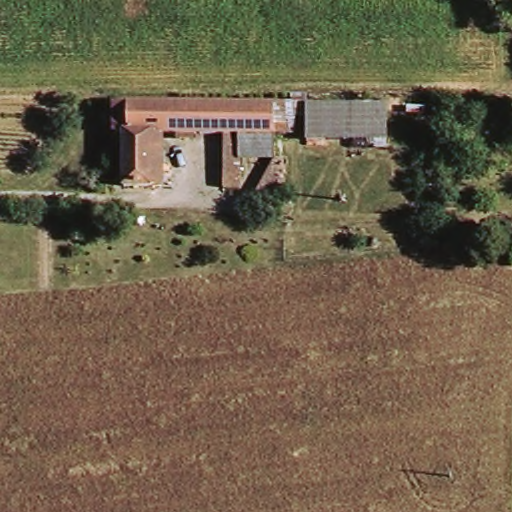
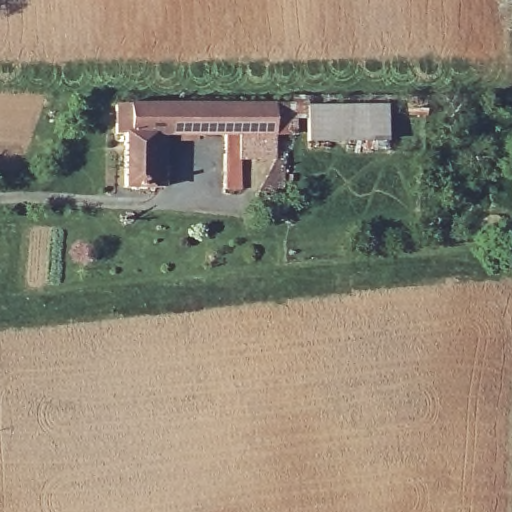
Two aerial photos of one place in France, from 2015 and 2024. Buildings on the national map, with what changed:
unchanged [(242,158),(241,187),(225,187),(225,134),(161,134),(162,184),(126,184),(126,131),(114,132),(114,105),(275,104),(276,134),(275,159),(242,158)]
unchanged [(395,109),(396,143),(313,144),(312,111),(395,109)]

